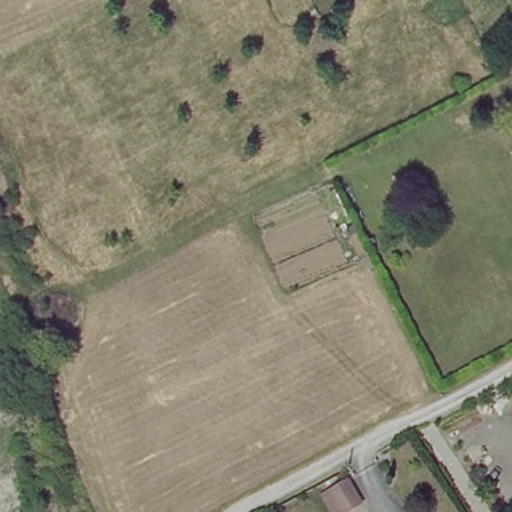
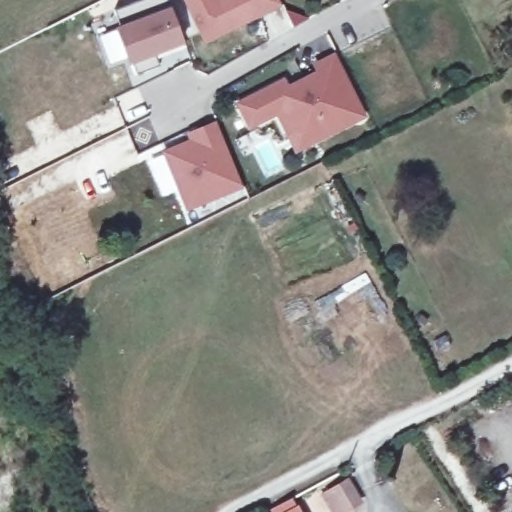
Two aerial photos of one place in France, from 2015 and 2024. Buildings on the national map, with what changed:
new [(209,44),(189,0),(283,0),(284,3),(209,44)]
new [(172,8),(187,39),(132,63),(117,31),(172,8)]
new [(287,73),(292,79),(318,66),(315,60),(338,48),(370,111),(298,149),(280,114),(255,125),(240,96),(287,73)]
new [(192,137),(188,130),(216,116),(247,181),(193,207),(166,150),(192,137)]
unchanged [(359,506),(347,512),(328,512),(322,494),(342,483),(359,506)]
new [(297,506),(301,512),(283,512),(297,506)]

